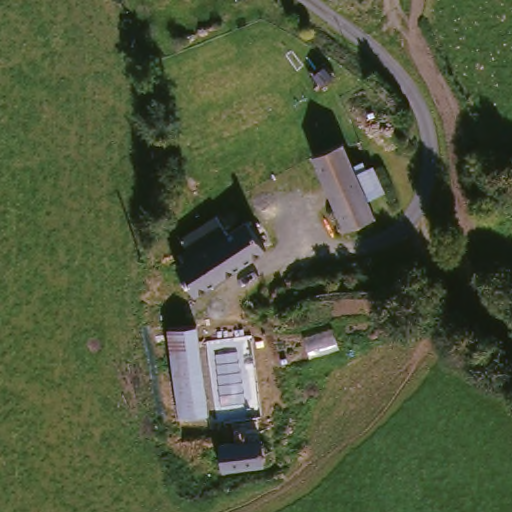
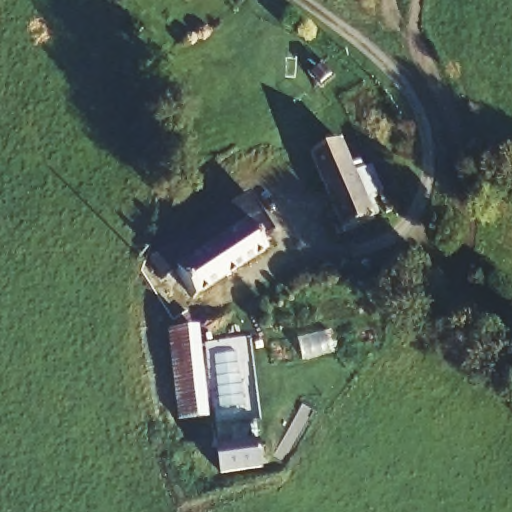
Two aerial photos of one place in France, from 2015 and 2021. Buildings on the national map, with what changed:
unchanged [(339,243),(304,158),(336,146),(348,175),(366,168),(376,193),(358,200),(369,231),(339,243)]
unchanged [(189,302),(173,274),(243,229),(261,257),(189,302)]
unchanged [(169,433),(158,343),(156,328),(186,324),(188,339),(201,430),(169,433)]
unchanged [(265,468),(224,474),(221,448),(262,442),(265,468)]

